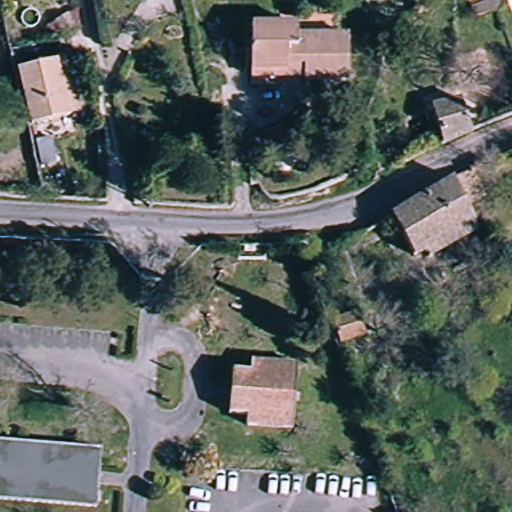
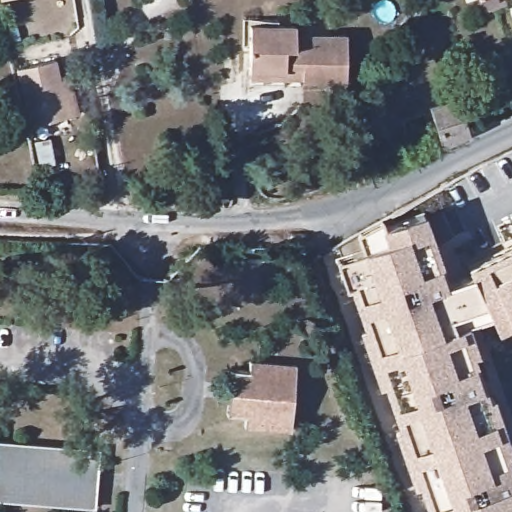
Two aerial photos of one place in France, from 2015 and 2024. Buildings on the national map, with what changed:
unchanged [(250,67),(252,19),(279,20),(279,27),(296,28),(296,38),(343,40),(340,84),(300,82),(300,77),(250,74),(250,67)]
unchanged [(75,118),(64,120),(28,130),(13,72),(50,63),(55,83),(66,80),(75,118)]
unchanged [(461,102),(466,133),(433,148),(427,107),(461,102)]
demolished [(424,258),(422,252),(409,259),(391,217),(453,181),(473,233),(424,258)]
new [(497,331),(490,317),(470,324),(478,351),(474,353),(488,395),(493,394),(512,448),(512,451),(508,453),(512,463),(512,512),(427,512),(417,485),(413,486),(393,430),(397,427),(383,385),(378,386),(359,330),(363,329),(346,286),(337,258),(362,249),(356,233),(383,218),(384,225),(425,211),(449,281),(470,273),(466,266),(512,245),(512,329),(510,325),(497,331)]
demolished [(335,342),(325,319),(347,311),(356,333),(335,342)]
unchanged [(239,425),(240,417),(226,414),(229,370),(242,371),(244,362),(291,366),(287,431),(239,425)]
unchanged [(93,453),(87,510),(0,503),(0,444),(93,453)]

